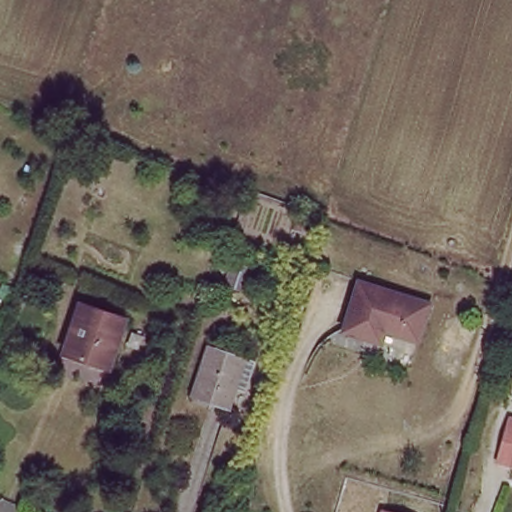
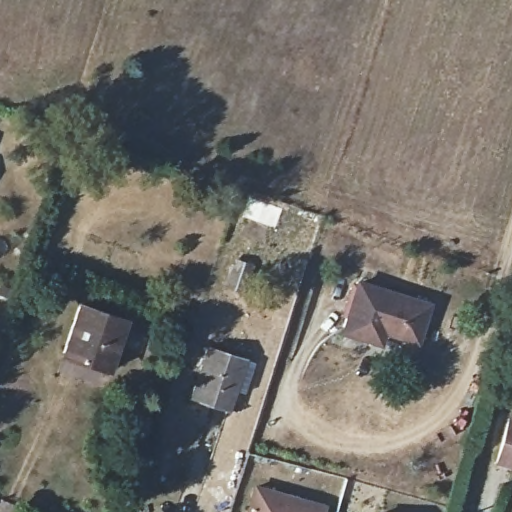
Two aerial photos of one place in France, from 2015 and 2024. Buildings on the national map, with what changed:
unchanged [(102,160),(85,155),(89,139),(107,143),(102,160)]
unchanged [(238,255),(251,258),(246,277),(233,274),(238,255)]
unchanged [(355,285),(431,305),(417,345),(394,340),(392,348),(341,335),(355,285)]
unchanged [(127,317),(112,366),(67,353),(82,302),(127,317)]
unchanged [(198,390),(211,347),(244,357),(236,385),(241,387),(237,403),(198,390)]
unchanged [(502,461),(512,419),(512,464),(502,461)]
new [(327,503),(325,512),(244,512),(252,481),(327,503)]
unchanged [(387,512),(378,512),(379,510),(387,512)]

